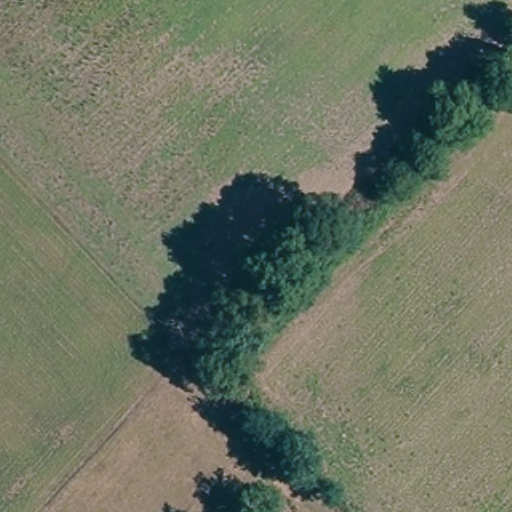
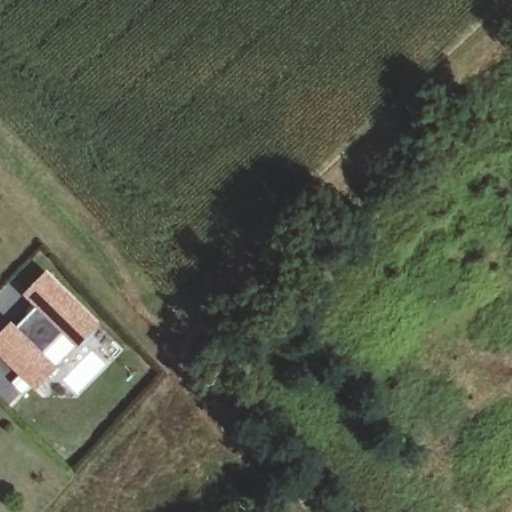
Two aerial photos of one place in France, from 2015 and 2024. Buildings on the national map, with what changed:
new [(20,333),(43,309),(27,294),(46,274),(99,324),(79,344),(66,332),(44,355),(57,368),(38,387),(0,351),(0,346),(16,329),(20,333)]

